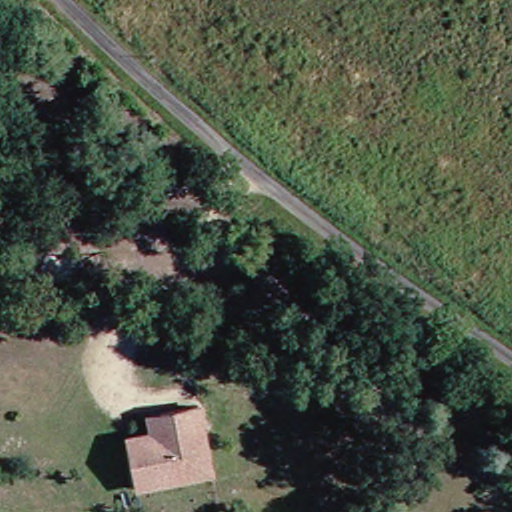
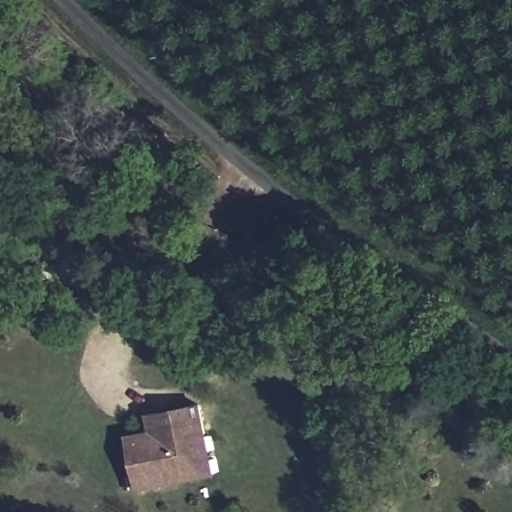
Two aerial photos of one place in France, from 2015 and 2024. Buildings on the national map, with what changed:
unchanged [(213,478),(139,496),(129,457),(126,445),(150,440),(146,422),(159,419),(196,409),(213,478)]

